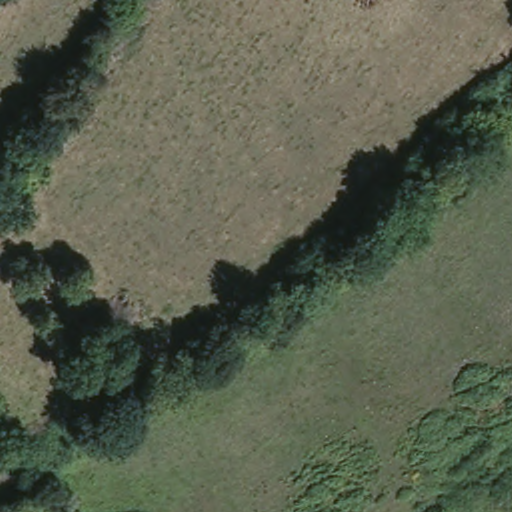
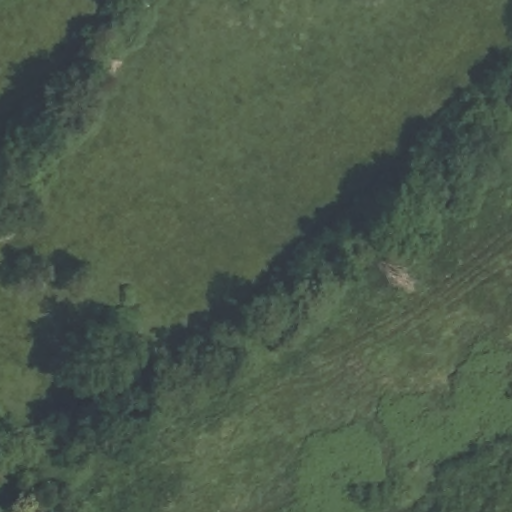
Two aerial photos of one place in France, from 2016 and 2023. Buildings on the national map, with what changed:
[]

